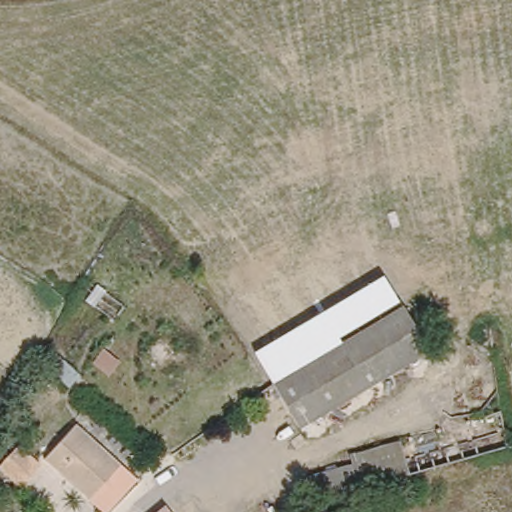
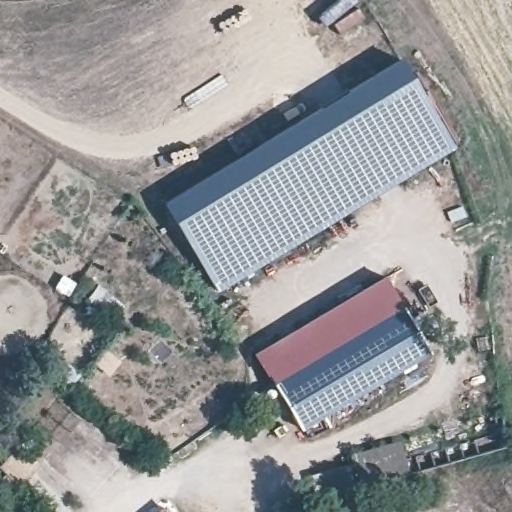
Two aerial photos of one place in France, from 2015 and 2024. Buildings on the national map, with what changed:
new [(453,146),(216,289),(163,204),(398,56),(453,146)]
unchanged [(255,351),(384,275),(402,305),(272,382),(255,351)]
unchanged [(298,427),(274,384),(272,382),(402,305),(430,349),(298,427)]
unchanged [(323,468),(360,459),(357,449),(505,409),(512,445),(328,491),(323,468)]
demolished [(110,512),(107,512),(93,499),(50,459),(80,426),(125,466),(139,479),(110,512)]
unchanged [(166,507),(170,512),(159,512),(166,507)]

